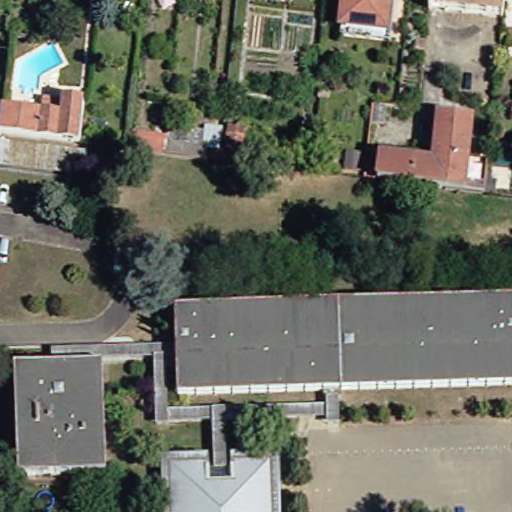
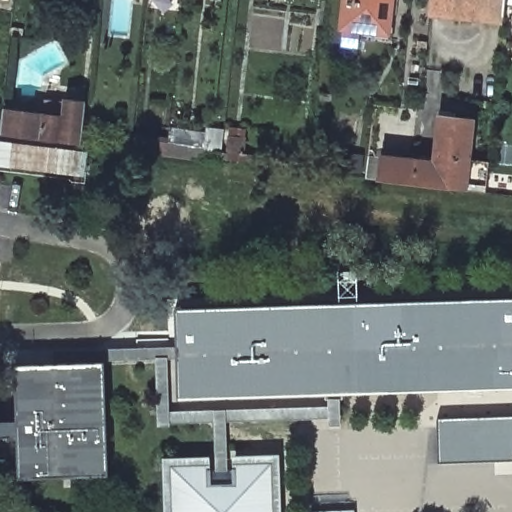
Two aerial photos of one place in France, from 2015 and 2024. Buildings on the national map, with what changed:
unchanged [(376,0),(372,35),(331,31),(334,0),(376,0)]
unchanged [(433,17),(417,16),(418,0),(453,0),(451,19),(433,17)]
unchanged [(493,0),(490,22),(451,19),(453,0),(493,0)]
unchanged [(83,146),(42,141),(44,115),(46,100),(87,105),(83,146)]
unchanged [(2,120),(3,111),(44,115),(42,141),(0,136),(0,119),(2,120)]
unchanged [(369,157),(369,151),(402,155),(424,156),(427,134),(429,115),(441,116),(434,189),(399,185),(367,181),(369,157)]
unchanged [(473,194),(460,192),(434,189),(441,116),(461,119),(457,158),(476,160),(473,194)]
unchanged [(196,161),(153,156),(156,126),(162,127),(161,140),(192,145),(193,131),(199,131),(196,161)]
unchanged [(223,148),(225,126),(241,127),(239,150),(223,148)]
unchanged [(73,180),(0,171),(0,144),(77,152),(73,180)]
unchanged [(512,298),(512,388),(329,393),(168,398),(167,365),(167,349),(166,307),(512,298)]
unchanged [(146,365),(93,367),(93,368),(44,368),(44,352),(167,349),(167,365),(146,365)]
unchanged [(167,365),(168,398),(329,393),(331,427),(314,428),(314,419),(214,423),(213,458),(222,458),(268,457),(271,512),(153,512),(151,458),(202,457),(202,423),(161,425),(160,430),(147,428),(146,365),(167,365)]
unchanged [(97,476),(8,477),(5,369),(44,368),(93,368),(97,476)]
new [(512,414),(512,458),(440,461),(440,417),(512,414)]

